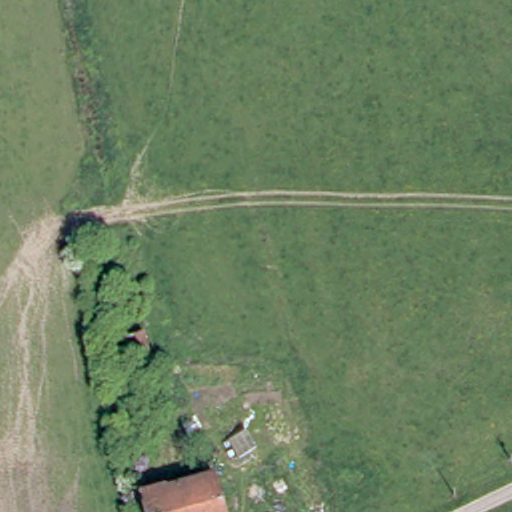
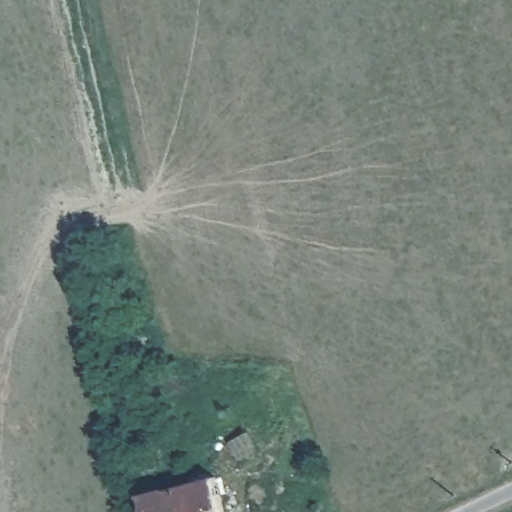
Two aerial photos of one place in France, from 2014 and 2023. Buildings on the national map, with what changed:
unchanged [(161,363),(142,367),(137,344),(155,339),(161,363)]
unchanged [(142,497),(215,479),(223,512),(145,512),(142,497)]

